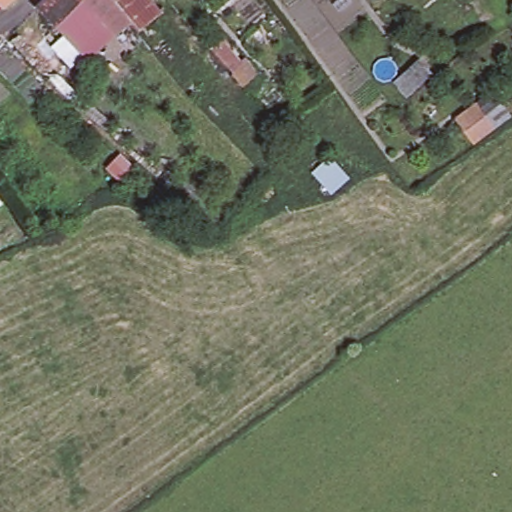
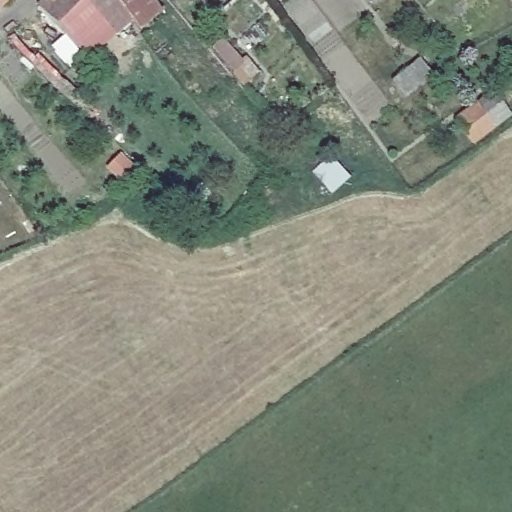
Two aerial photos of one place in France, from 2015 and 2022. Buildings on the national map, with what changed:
unchanged [(0,6),(0,0),(7,0),(0,6)]
unchanged [(113,36),(90,59),(89,60),(40,9),(49,0),(149,0),(160,13),(138,30),(131,23),(115,39),(113,36)]
unchanged [(484,101),(500,123),(478,139),(462,117),(484,101)]

